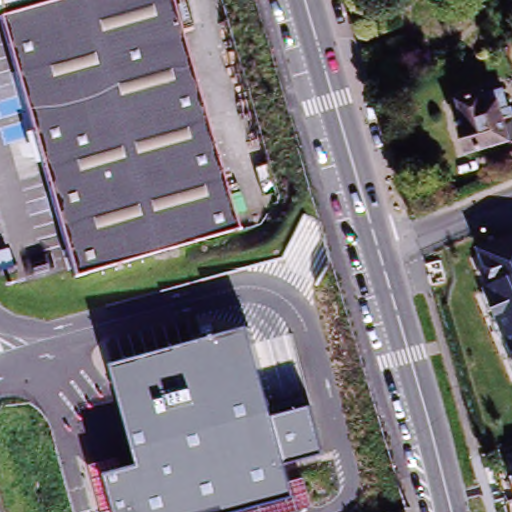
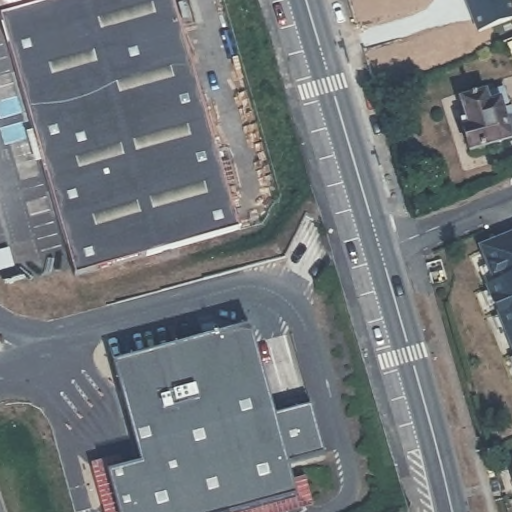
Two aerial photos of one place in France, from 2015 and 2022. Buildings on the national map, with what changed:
unchanged [(191,62),(240,232),(75,279),(37,149),(0,22),(0,16),(2,16),(0,7),(0,0),(173,0),(191,62)]
new [(512,16),(512,21),(476,35),(463,0),(506,0),(512,16)]
unchanged [(497,86),(501,101),(493,103),(497,115),(512,110),(512,112),(512,141),(505,143),(503,137),(462,149),(456,127),(463,125),(456,99),(497,86)]
unchanged [(477,278),(486,273),(477,248),(512,234),(512,356),(477,278)]
unchanged [(295,512),(101,512),(88,465),(134,452),(111,365),(250,327),(272,417),(311,407),(323,454),(286,463),(291,481),(305,478),(312,507),(295,512)]

